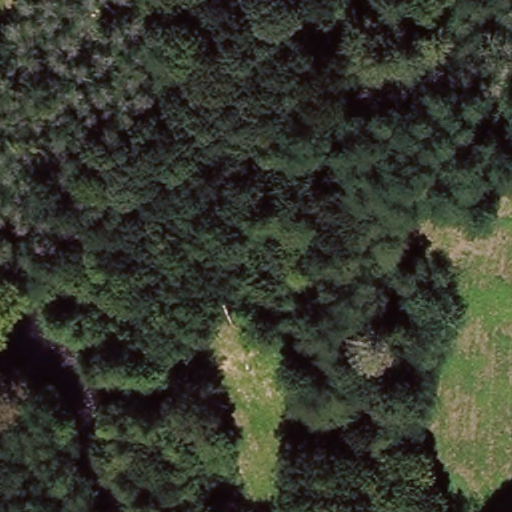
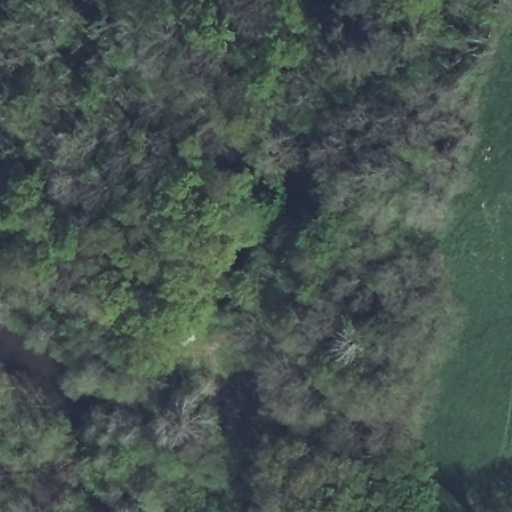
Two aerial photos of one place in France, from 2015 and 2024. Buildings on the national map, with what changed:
[]

